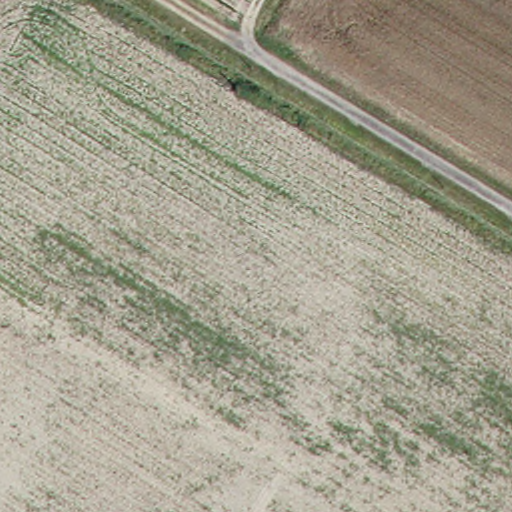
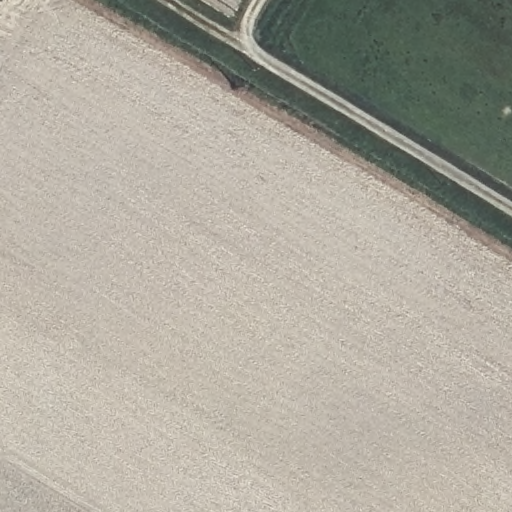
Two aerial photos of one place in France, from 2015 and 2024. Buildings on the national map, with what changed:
[]

